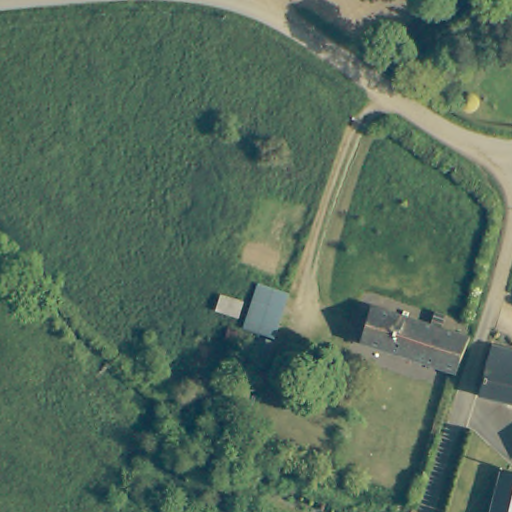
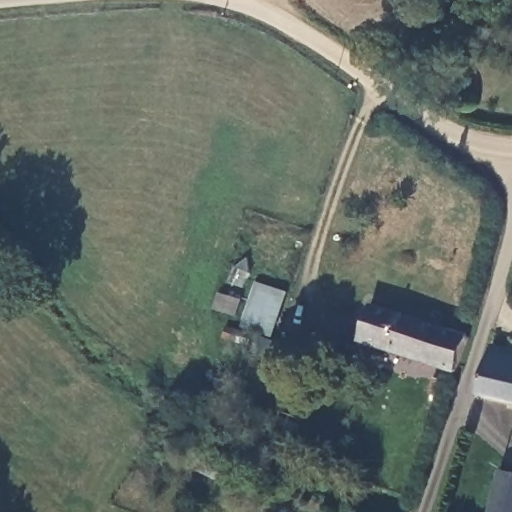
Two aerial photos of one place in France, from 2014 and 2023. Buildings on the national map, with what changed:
unchanged [(283,295),(271,339),(241,331),(253,286),(283,295)]
unchanged [(466,335),(457,372),(359,345),(370,308),(466,335)]
unchanged [(252,357),(255,338),(272,344),(267,361),(252,357)]
unchanged [(477,398),(488,350),(509,353),(512,354),(512,407),(477,398)]
unchanged [(512,476),(512,512),(491,512),(502,472),(512,476)]

